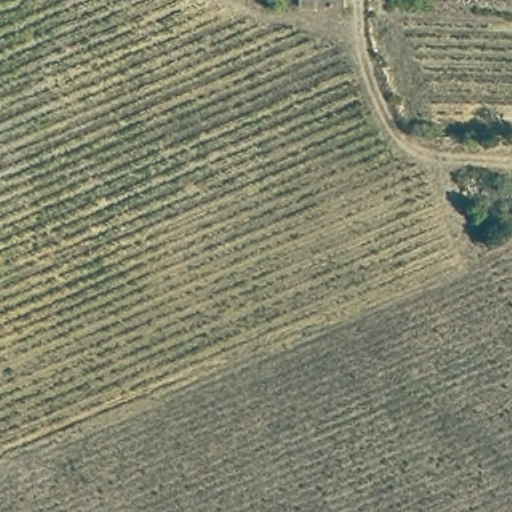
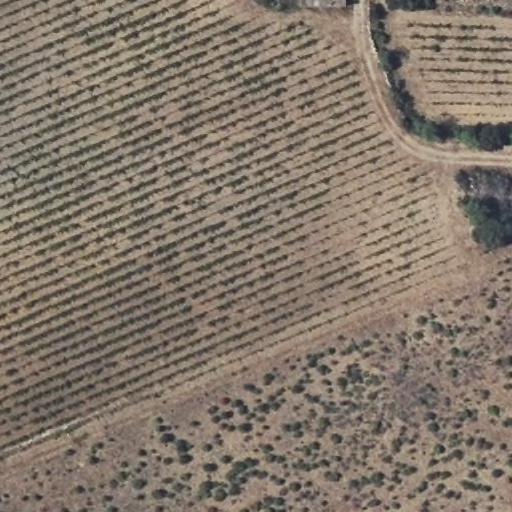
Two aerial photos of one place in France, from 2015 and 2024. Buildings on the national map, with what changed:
unchanged [(301,0),(341,0),(341,4),(301,3),(301,0)]

